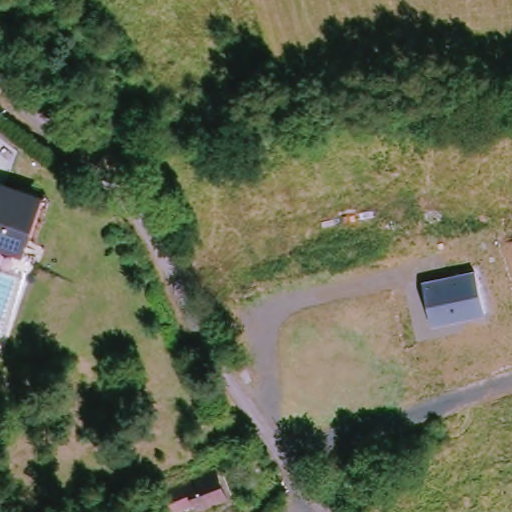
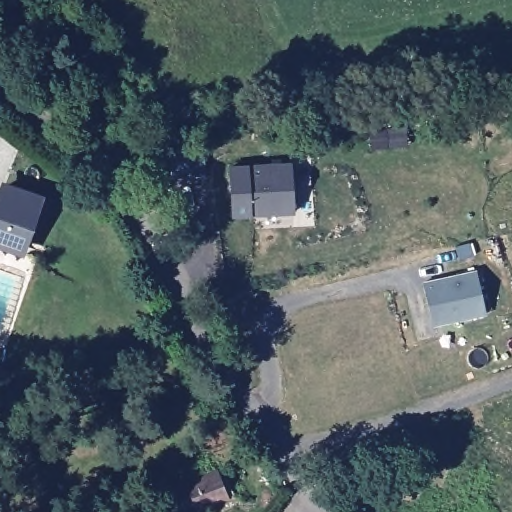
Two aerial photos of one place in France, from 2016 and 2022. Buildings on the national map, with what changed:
new [(233,216),(230,167),(291,162),(295,214),(233,216)]
unchanged [(0,249),(0,193),(10,196),(12,191),(43,201),(30,242),(17,238),(12,252),(0,249)]
unchanged [(485,314),(432,327),(422,281),(475,269),(485,314)]
unchanged [(222,496),(190,512),(172,512),(163,498),(212,474),(222,496)]

